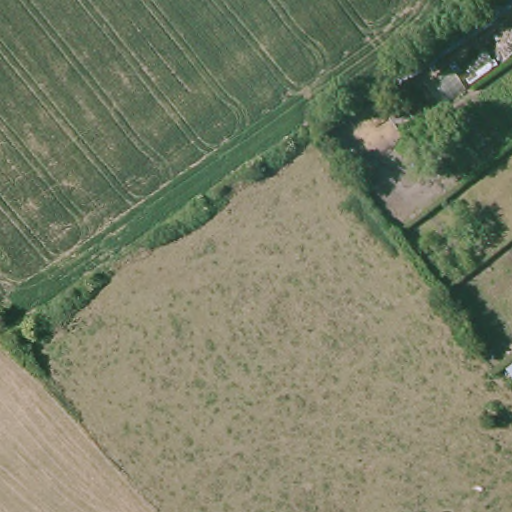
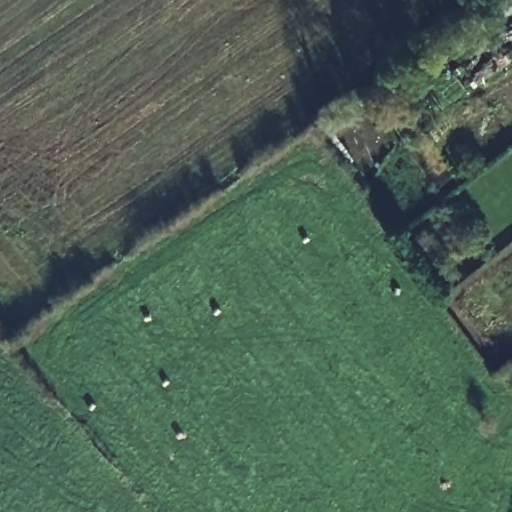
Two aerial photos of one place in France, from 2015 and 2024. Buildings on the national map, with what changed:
[]

